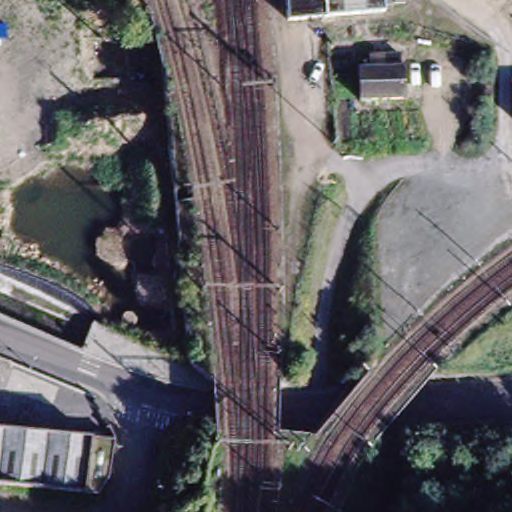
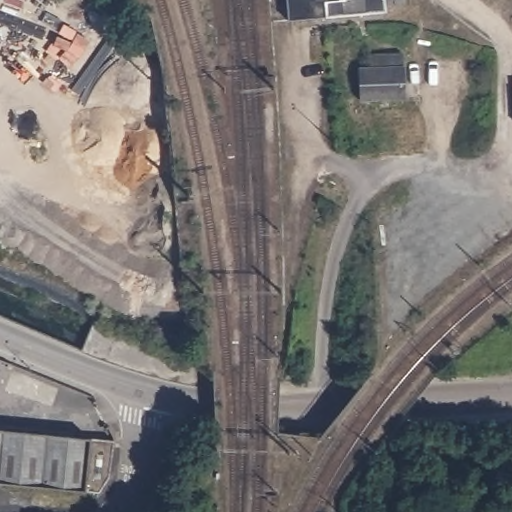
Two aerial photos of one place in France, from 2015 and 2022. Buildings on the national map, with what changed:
unchanged [(405,4),(395,4),(382,5),(383,12),(287,19),(286,0),(404,0),(405,4)]
unchanged [(385,67),(385,55),(401,54),(403,99),(360,100),(358,69),(385,67)]
unchanged [(0,426),(112,437),(110,472),(99,490),(96,490),(0,480),(0,426)]
unchanged [(392,438),(393,440),(394,440),(395,440),(395,441),(395,442),(396,443),(396,444),(396,445),(396,446),(395,448),(395,450),(395,451),(393,452),(392,471),(390,470),(378,470),(376,469),(377,459),(377,447),(377,443),(382,438),(392,438)]

